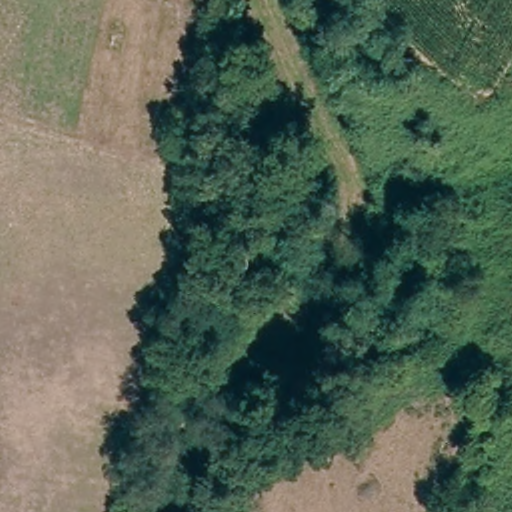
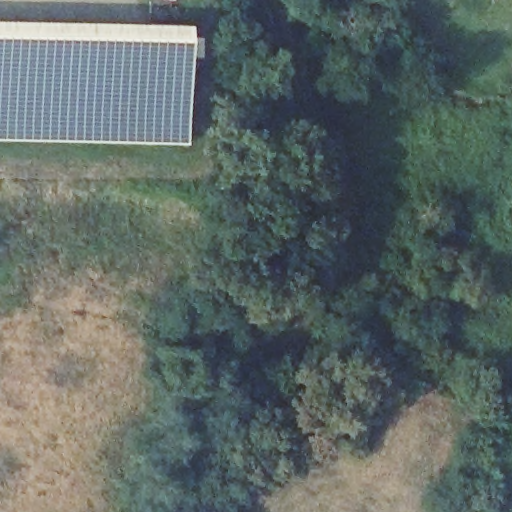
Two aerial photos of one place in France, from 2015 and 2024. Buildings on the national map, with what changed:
new [(0,139),(0,18),(184,22),(182,143),(0,139)]

